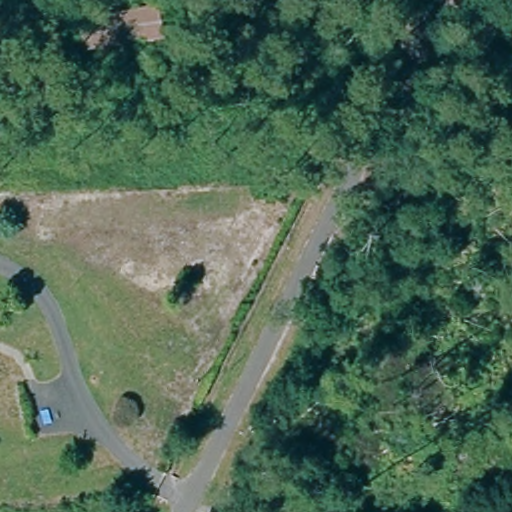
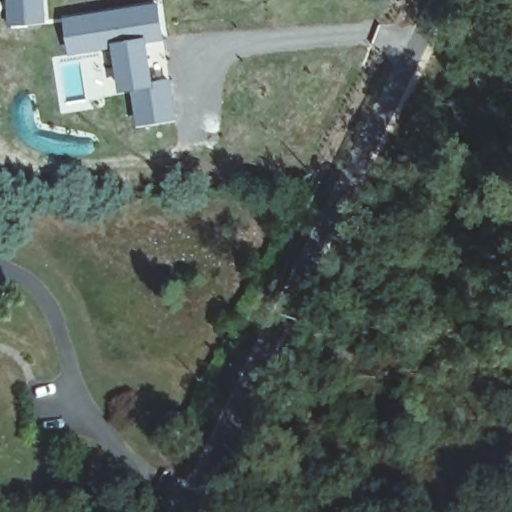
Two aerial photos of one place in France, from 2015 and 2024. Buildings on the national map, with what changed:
new [(6,27),(4,0),(45,0),(47,22),(6,27)]
demolished [(164,1),(167,28),(76,42),(72,21),(77,12),(164,1)]
new [(165,40),(149,42),(155,80),(172,77),(177,119),(137,125),(132,92),(121,93),(114,45),(71,52),(64,17),(159,2),(165,40)]

